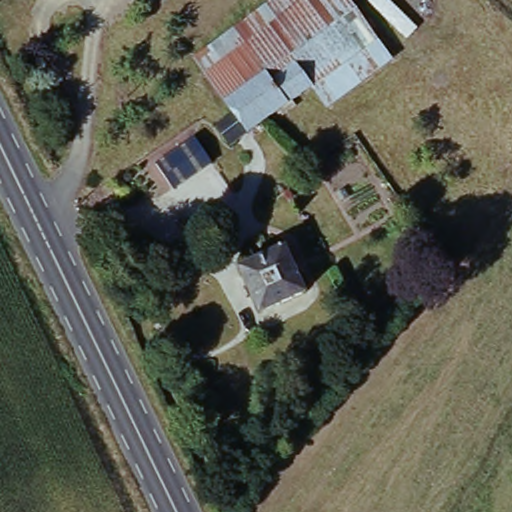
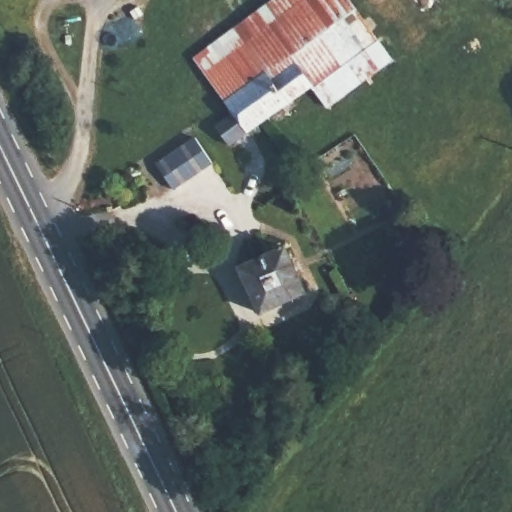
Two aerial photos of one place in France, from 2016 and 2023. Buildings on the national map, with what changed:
unchanged [(225,100),(227,97),(295,52),(266,12),(283,0),(351,0),(395,64),(332,109),(316,87),(266,120),(249,130),(229,144),(217,124),(234,112),(225,100)]
unchanged [(201,59),(266,12),(295,52),(227,97),(201,59)]
unchanged [(180,146),(192,170),(182,174),(187,189),(164,202),(145,164),(180,146)]
unchanged [(395,211),(388,200),(396,195),(401,203),(403,204),(395,211)]
unchanged [(279,243),(300,288),(257,306),(236,261),(279,243)]

